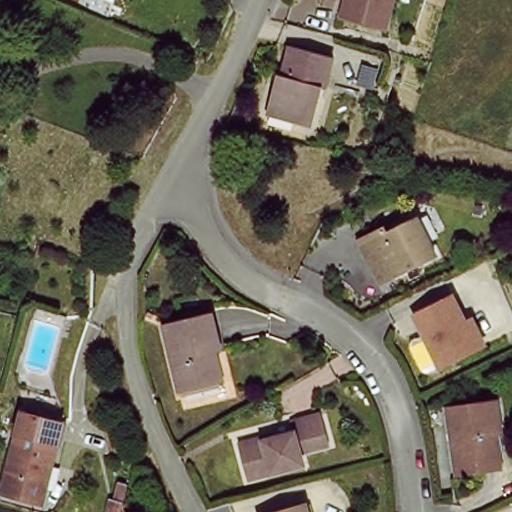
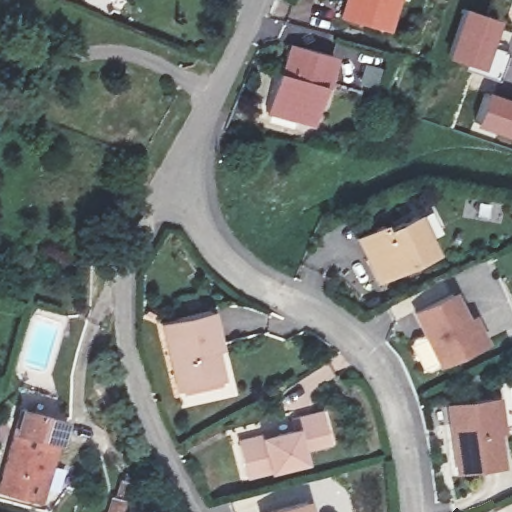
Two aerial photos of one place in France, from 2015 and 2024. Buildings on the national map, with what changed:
unchanged [(337,13),(340,0),(389,0),(384,25),(337,13)]
new [(460,6),(496,17),(477,70),(442,56),(460,6)]
unchanged [(335,51),(324,86),(319,86),(309,120),(261,106),(276,67),(284,70),(291,38),(335,51)]
new [(512,99),(512,138),(474,126),(485,91),(512,99)]
unchanged [(434,258),(375,282),(357,237),(384,227),(388,234),(419,220),(434,258)]
unchanged [(482,341),(439,362),(413,311),(455,290),(482,341)]
unchanged [(219,344),(209,347),(221,378),(181,392),(155,325),(204,306),(219,344)]
demolished [(21,373),(0,386),(0,339),(21,373)]
unchanged [(500,466),(450,471),(442,399),(495,394),(500,466)]
unchanged [(323,440),(294,447),(297,457),(242,472),(234,444),(288,428),(285,418),(313,409),(323,440)]
unchanged [(33,503),(0,489),(0,473),(23,413),(62,423),(33,503)]
unchanged [(306,512),(254,512),(303,499),(306,512)]

